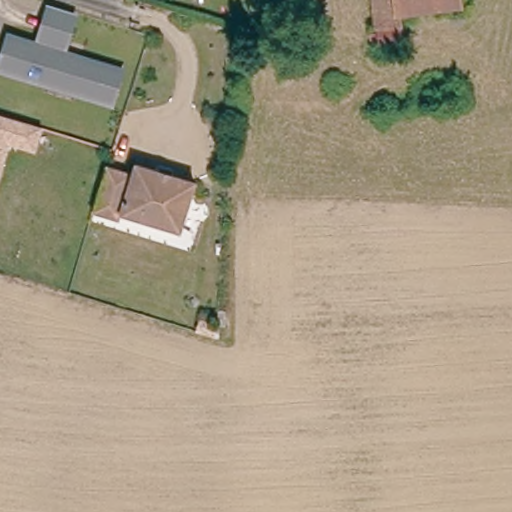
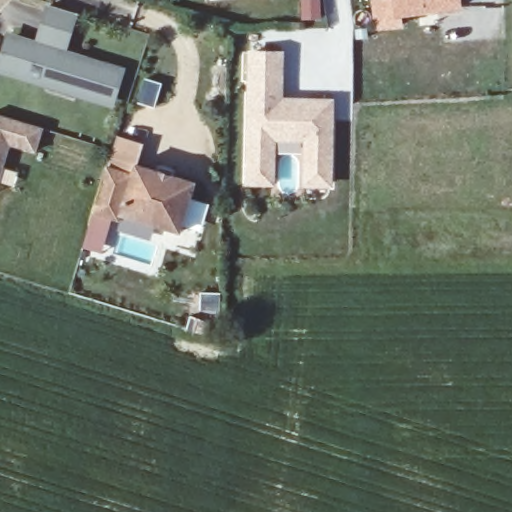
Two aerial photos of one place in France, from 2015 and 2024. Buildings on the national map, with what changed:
unchanged [(399,8),(401,21),(376,24),(374,11),(373,0),(459,0),(459,1),(399,8)]
unchanged [(78,85),(79,80),(51,71),(49,75),(1,60),(10,32),(39,40),(42,31),(50,4),(74,11),(66,39),(60,37),(57,46),(121,66),(112,95),(78,85)]
new [(283,50),(283,96),(334,98),(331,188),(301,187),(301,141),(275,141),(274,185),(244,185),(247,49),(283,50)]
unchanged [(34,151),(8,143),(1,166),(0,166),(0,114),(38,126),(41,127),(34,151)]
unchanged [(194,182),(179,232),(118,215),(117,220),(92,212),(105,166),(131,174),(134,164),(194,182)]
unchanged [(0,166),(1,166),(0,171),(0,166)]

